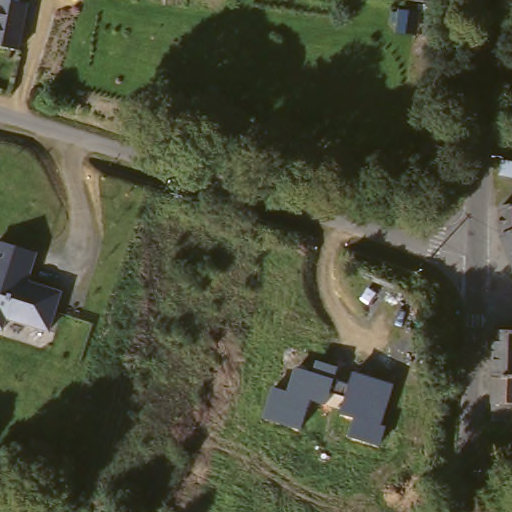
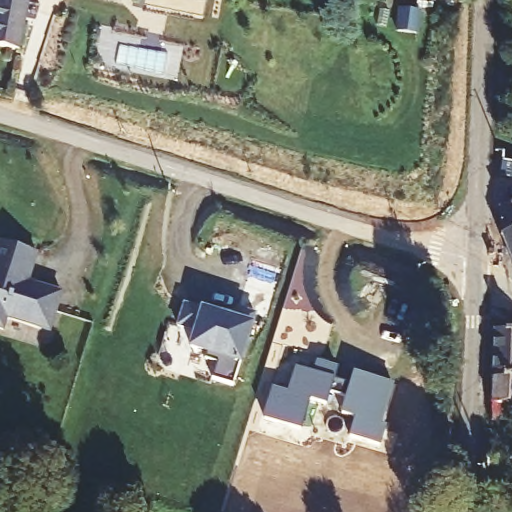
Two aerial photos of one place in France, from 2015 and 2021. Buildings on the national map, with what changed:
unchanged [(26,1),(32,2),(22,52),(0,48),(0,0),(26,0),(26,1)]
demolished [(363,11),(343,7),(344,0),(366,0),(363,11)]
unchanged [(492,172),(493,165),(493,157),(512,159),(512,174),(492,172)]
unchanged [(506,235),(501,200),(512,200),(512,246),(506,235)]
unchanged [(4,332),(0,331),(0,242),(39,252),(31,283),(63,293),(49,331),(8,321),(4,332)]
new [(213,380),(216,365),(203,361),(206,351),(190,346),(195,330),(177,324),(183,302),(234,319),(239,309),(256,315),(233,386),(213,380)]
unchanged [(491,401),(493,385),(498,311),(512,311),(512,403),(491,401)]
unchanged [(286,392),(294,367),(311,371),(316,360),(338,366),(333,379),(349,383),(353,371),(393,384),(381,424),(387,426),(381,446),(348,438),(351,420),(341,416),(346,399),(329,395),(326,405),(311,400),(299,430),(260,418),(271,389),(286,392)]

